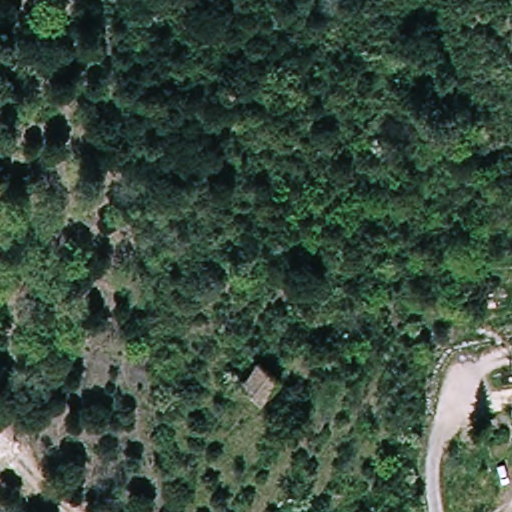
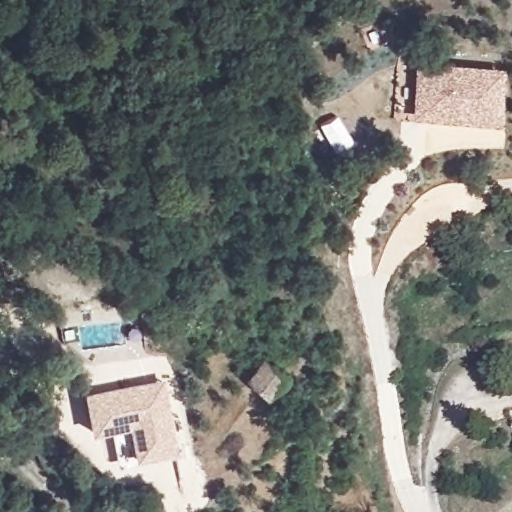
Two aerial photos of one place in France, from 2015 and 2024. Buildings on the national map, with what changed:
new [(417,62),(505,69),(500,126),(412,119),(417,62)]
unchanged [(290,369),(268,396),(245,374),(267,350),(290,369)]
new [(178,452),(134,460),(128,428),(92,434),(83,392),(162,378),(178,452)]

